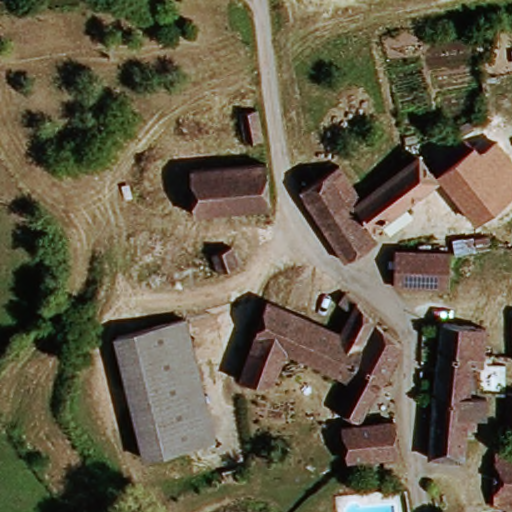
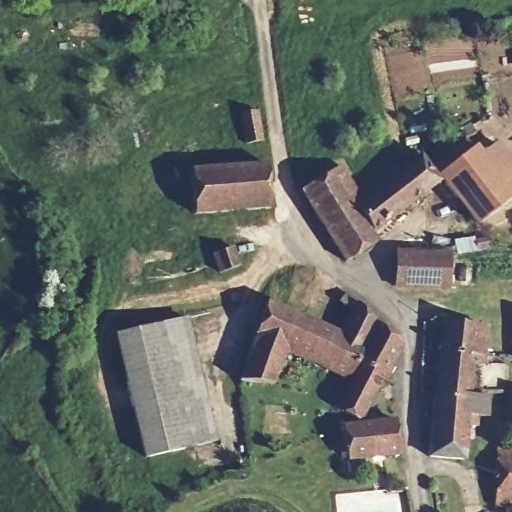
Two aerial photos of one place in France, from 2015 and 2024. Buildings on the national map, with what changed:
unchanged [(238,112),(256,110),(261,143),(242,146),(238,112)]
unchanged [(512,160),(512,201),(481,225),(445,176),(480,150),(486,159),(502,146),(512,160)]
unchanged [(378,229),(362,204),(425,158),(442,184),(378,229)]
unchanged [(269,165),(274,206),(197,216),(192,173),(269,165)]
unchanged [(356,204),(379,241),(349,263),(305,192),(346,167),(364,197),(356,204)]
unchanged [(218,275),(207,252),(232,247),(237,270),(218,275)]
unchanged [(400,250),(453,250),(454,285),(401,285),(400,250)]
unchanged [(362,368),(358,365),(351,377),(295,353),(281,386),(252,384),(247,383),(252,363),(272,303),(345,331),(360,302),(376,322),(407,350),(367,420),(343,408),(362,368)]
unchanged [(116,338),(186,320),(216,441),(147,459),(116,338)]
unchanged [(478,400),(489,401),(489,418),(479,418),(478,429),(468,428),(467,459),(434,460),(447,325),(490,329),(487,362),(481,361),(478,400)]
unchanged [(505,425),(506,391),(512,391),(512,425),(505,425)]
unchanged [(354,462),(352,425),(403,423),(406,455),(354,462)]
unchanged [(497,501),(500,443),(512,444),(512,502),(497,501)]

